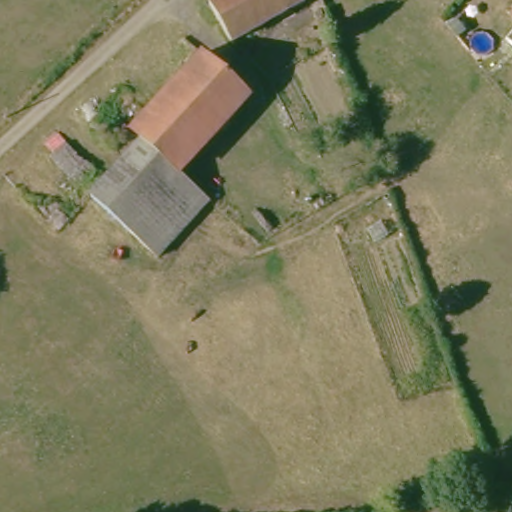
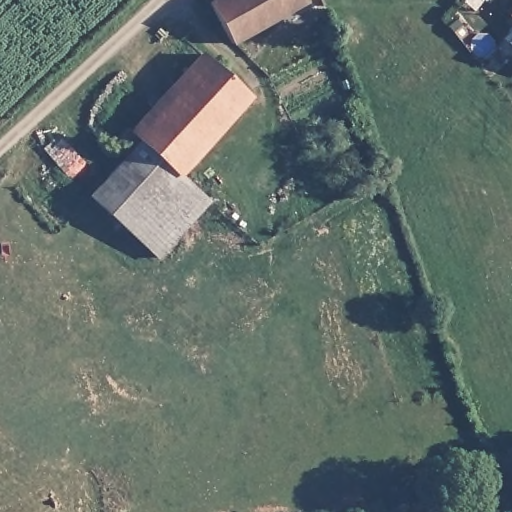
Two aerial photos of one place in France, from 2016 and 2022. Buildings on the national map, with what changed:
unchanged [(214,3),(219,0),(325,0),(235,44),(214,3)]
unchanged [(510,49),(512,48),(512,51),(510,49)]
unchanged [(137,134),(208,55),(256,98),(183,175),(145,142),(137,134)]
unchanged [(215,207),(165,260),(95,196),(145,142),(183,175),(215,207)]

